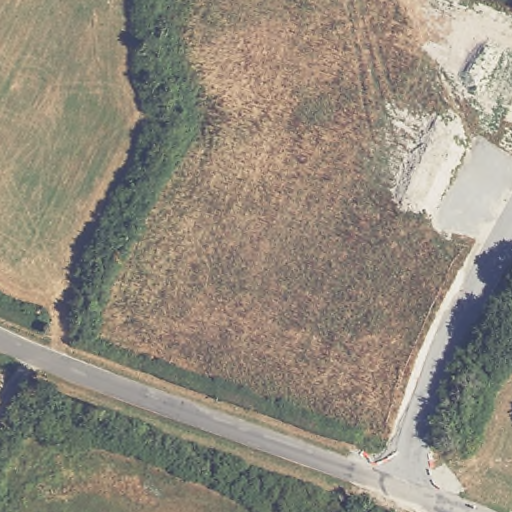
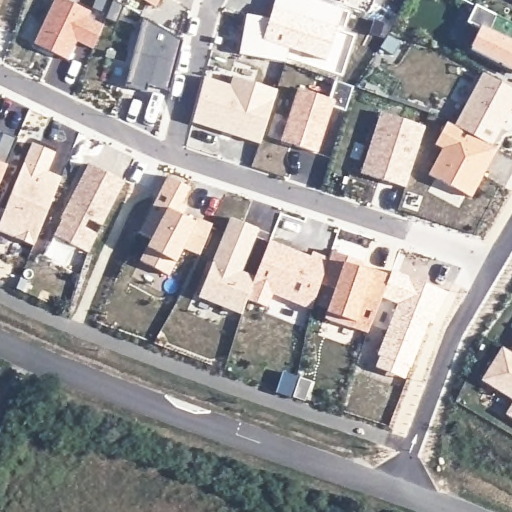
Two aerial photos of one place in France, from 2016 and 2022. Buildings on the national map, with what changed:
new [(53,0),(65,0),(90,11),(88,17),(103,23),(91,48),(76,42),(66,60),(34,43),(53,0)]
new [(155,7),(144,0),(159,0),(155,7)]
new [(512,23),(512,68),(510,68),(510,69),(471,50),(481,30),(467,23),(475,6),(512,23)]
new [(143,18),(182,41),(169,91),(148,85),(146,93),(125,87),(143,18)]
new [(512,89),(512,109),(511,109),(491,146),(454,127),(483,74),(512,89)]
new [(204,78),(230,86),(233,77),(276,91),(259,143),(230,134),(231,131),(225,129),(224,132),(192,122),(204,78)]
new [(298,89),(333,100),(316,153),(281,141),(298,89)]
new [(380,113),(425,127),(405,188),(361,174),(380,113)]
new [(443,149),(435,145),(447,123),(454,127),(491,146),(497,149),(471,198),(429,175),(443,149)]
new [(3,132),(17,138),(0,179),(0,139),(3,132)]
new [(62,220),(60,219),(88,164),(123,182),(101,226),(88,219),(83,228),(97,235),(88,253),(54,236),(62,220)]
new [(153,202),(194,223),(196,219),(211,225),(199,255),(183,248),(168,276),(140,261),(151,240),(138,233),(153,202)]
new [(230,219),(258,230),(241,272),(254,278),(247,297),(246,299),(241,314),(198,297),(230,219)]
new [(247,297),(254,278),(271,236),(328,259),(320,284),(311,310),(272,294),(267,307),(246,299),(247,297)]
new [(331,252),(363,263),(362,267),(372,270),(389,276),(367,333),(325,318),(335,289),(320,284),(328,259),(331,252)]
new [(500,347),(512,354),(512,399),(481,381),(500,347)]
new [(512,404),(512,419),(505,415),(512,404)]

